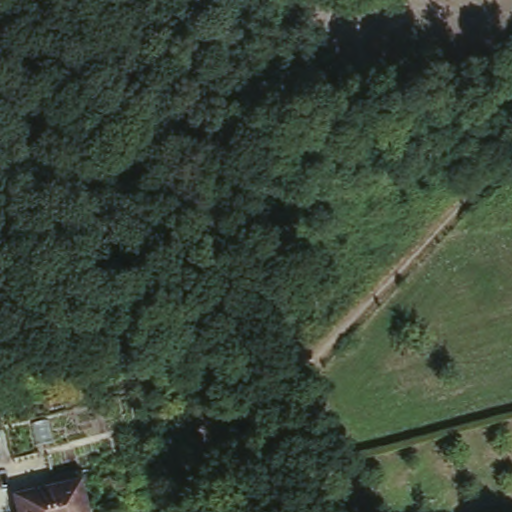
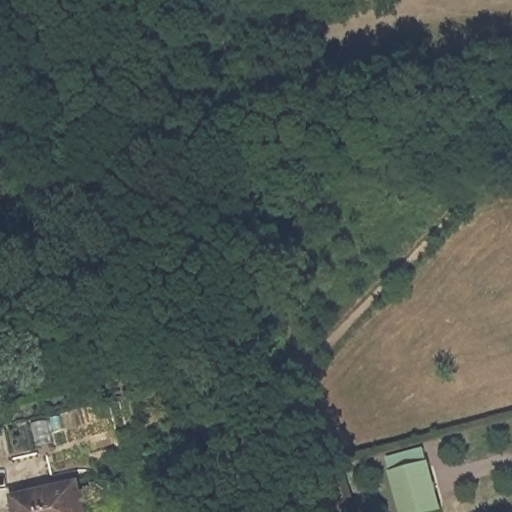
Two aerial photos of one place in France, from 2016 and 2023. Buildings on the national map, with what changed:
new [(392,475),(431,463),(436,485),(442,512),(400,512),(397,496),(392,475)]
unchanged [(87,512),(22,512),(18,495),(79,481),(87,512)]

